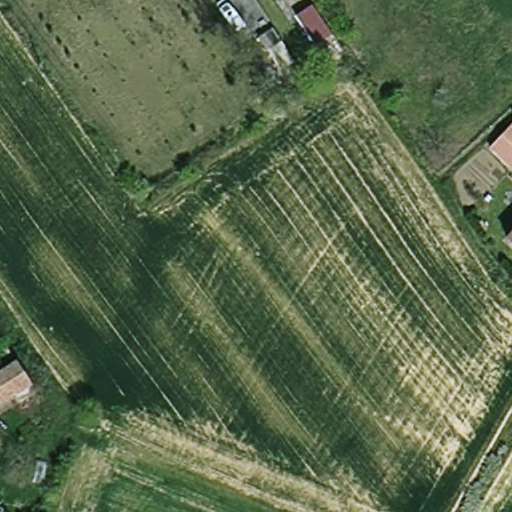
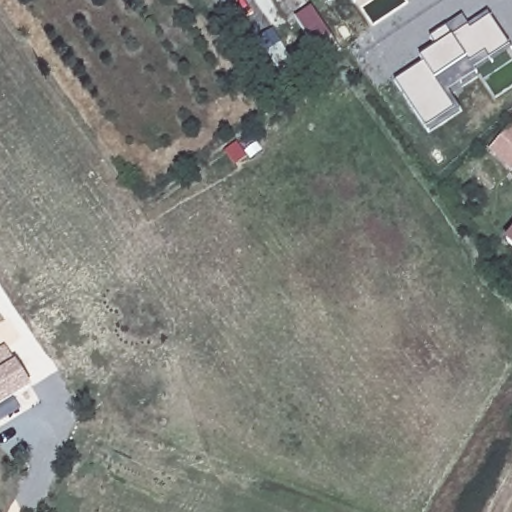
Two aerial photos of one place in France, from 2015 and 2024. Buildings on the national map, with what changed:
unchanged [(330,35),(314,46),(297,21),(313,10),(330,35)]
new [(397,82),(426,65),(421,57),(437,47),(431,38),(447,28),(463,16),(469,25),(488,12),(491,18),(509,44),(510,46),(512,49),(512,51),(493,63),(491,60),(476,70),(478,74),(449,91),(461,111),(430,132),(426,130),(397,82)]
unchanged [(489,151),(512,126),(512,171),(511,172),(489,151)]
unchanged [(512,236),(512,248),(506,242),(512,236)]
unchanged [(0,375),(0,350),(6,347),(17,365),(0,375)]
unchanged [(31,386),(0,406),(0,375),(17,365),(31,386)]

